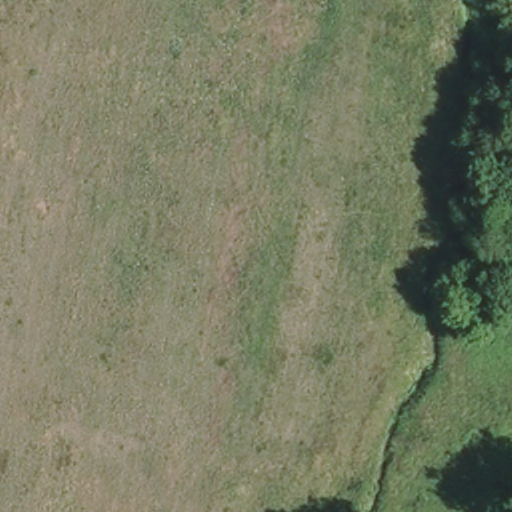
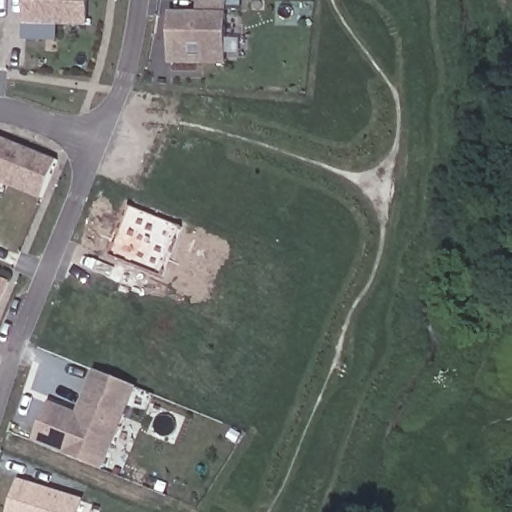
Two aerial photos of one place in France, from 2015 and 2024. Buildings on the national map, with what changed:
new [(88,25),(27,22),(28,0),(89,0),(88,25)]
new [(232,64),(174,63),(175,14),(205,14),(205,0),(233,0),(232,64)]
new [(44,199),(0,182),(0,140),(1,138),(60,162),(44,199)]
new [(165,275),(111,254),(132,205),(185,227),(165,275)]
new [(0,305),(0,278),(10,282),(0,305)]
new [(136,388),(103,472),(35,444),(50,406),(80,418),(96,372),(136,388)]
new [(81,512),(14,512),(23,483),(84,503),(81,512)]

